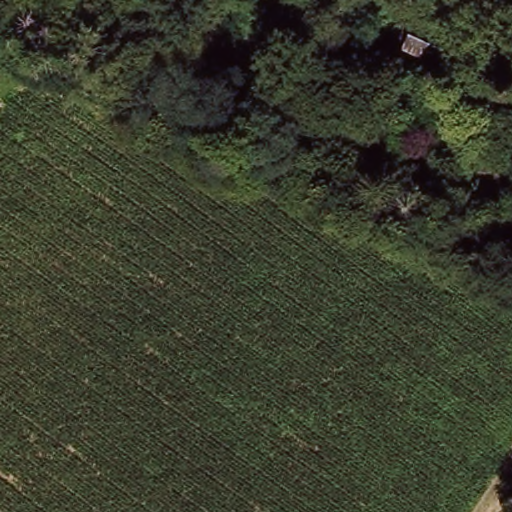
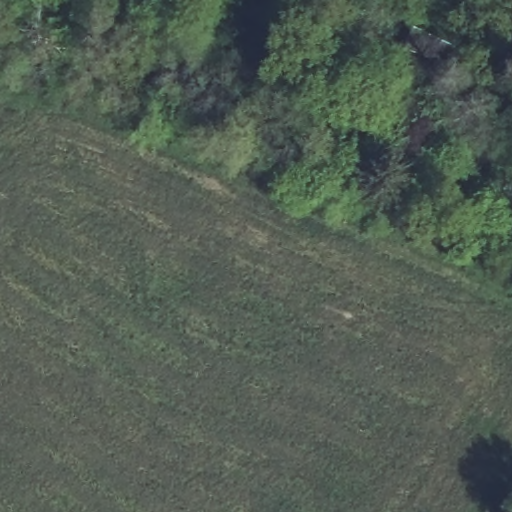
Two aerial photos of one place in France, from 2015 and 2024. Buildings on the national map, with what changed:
unchanged [(404,44),(415,19),(453,36),(442,61),(404,44)]

